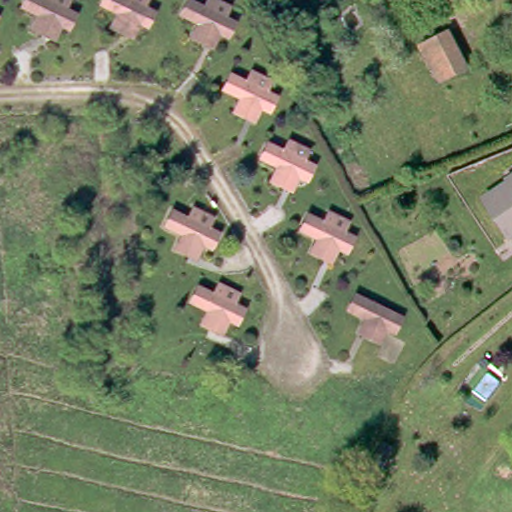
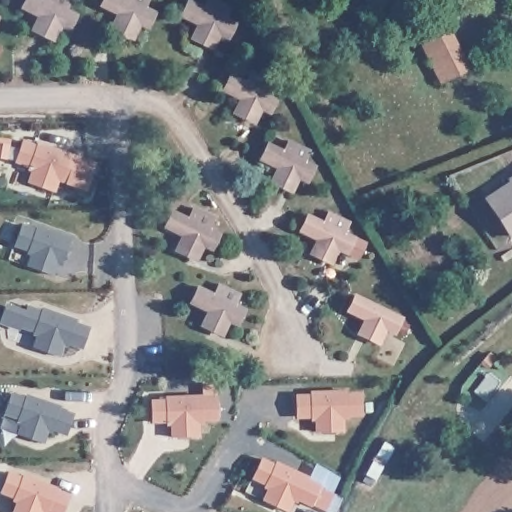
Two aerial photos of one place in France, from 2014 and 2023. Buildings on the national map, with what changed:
unchanged [(34,25),(39,13),(23,5),(25,0),(68,0),(66,5),(76,10),(69,26),(60,22),(55,34),(34,25)]
unchanged [(116,24),(118,17),(122,10),(103,1),(103,0),(148,0),(147,1),(159,7),(154,16),(151,23),(141,20),(135,34),(116,24)]
unchanged [(190,35),(197,20),(179,12),(184,0),(196,0),(203,3),(204,0),(226,0),(228,0),(222,11),(234,17),(227,32),(217,29),(211,44),(190,35)]
unchanged [(421,40),(448,25),(465,62),(437,75),(421,40)]
unchanged [(230,110),(237,95),(219,87),(227,71),(244,79),(249,67),(268,75),(263,87),(274,93),(267,109),(252,101),(245,116),(230,110)]
unchanged [(266,181),(272,165),(256,158),(262,142),(278,149),(284,136),(303,144),(298,158),(309,163),(303,179),(293,174),(286,190),(266,181)]
new [(35,143),(36,141),(72,155),(62,182),(57,180),(53,191),(26,182),(29,171),(26,170),(28,166),(14,161),(21,138),(35,143)]
unchanged [(512,174),(512,230),(509,232),(483,194),(512,174)]
unchanged [(305,248),(311,233),(295,225),(303,209),(318,216),(323,203),(342,212),(338,225),(349,231),(341,246),(331,241),(324,257),(305,248)]
unchanged [(175,250),(182,235),(164,226),(172,210),(188,218),(192,209),(194,206),(198,209),(214,217),(208,229),(219,235),(212,250),(201,245),(195,258),(175,250)]
new [(26,245),(27,242),(13,237),(20,217),(34,222),(35,220),(70,232),(61,257),(56,255),(52,268),(27,260),(31,247),(26,245)]
unchanged [(195,325),(203,310),(185,302),(192,287),(208,295),(214,281),(234,291),(228,305),(240,310),(232,325),(223,321),(216,336),(195,325)]
unchanged [(357,333),(363,319),(345,311),(353,294),(400,315),(393,332),(385,328),(378,343),(357,333)]
new [(41,309),(42,306),(80,321),(79,323),(90,326),(82,347),(68,343),(66,347),(63,345),(60,355),(32,346),(36,335),(32,333),(33,330),(20,325),(26,303),(41,309)]
new [(309,392),(309,390),(347,388),(347,391),(361,391),(362,415),(347,415),(347,419),(343,419),(343,429),(314,430),(314,419),(311,419),(311,417),(295,418),(294,393),(309,392)]
new [(17,418),(18,415),(4,411),(11,391),(25,395),(26,393),(61,405),(60,407),(74,412),(67,432),(53,428),(52,430),(47,428),(43,441),(18,433),(23,420),(17,418)]
new [(216,395),(217,419),(204,419),(204,422),(198,422),(198,435),(171,436),(172,424),(166,425),(166,421),(151,422),(150,398),(165,398),(165,395),(202,393),(202,396),(216,395)]
new [(265,484),(266,481),(252,475),(262,456),(275,462),(276,459),(310,473),(309,476),(334,488),(328,502),(316,497),(314,501),(300,495),(298,498),(294,496),(288,509),(264,498),(270,486),(265,484)]
new [(22,472),(58,485),(57,489),(69,494),(61,512),(54,512),(48,510),(47,512),(9,512),(14,501),(11,500),(12,497),(0,492),(0,488),(7,470),(21,475),(22,472)]

